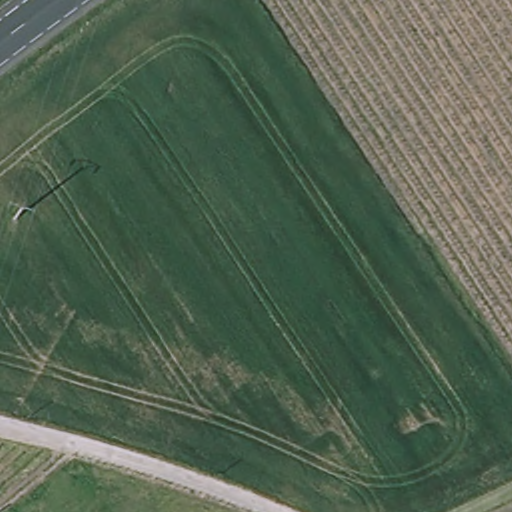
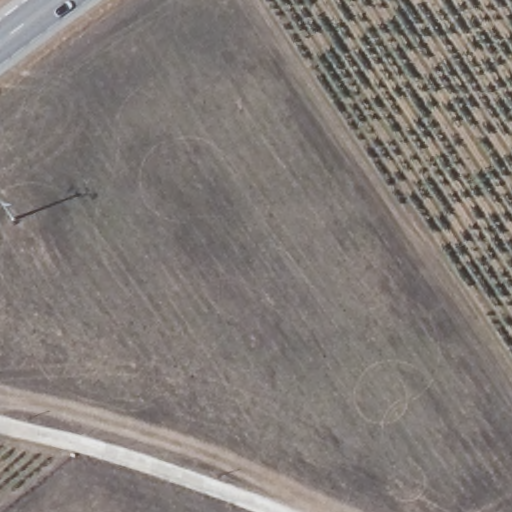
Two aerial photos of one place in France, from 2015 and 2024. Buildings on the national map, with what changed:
[]

